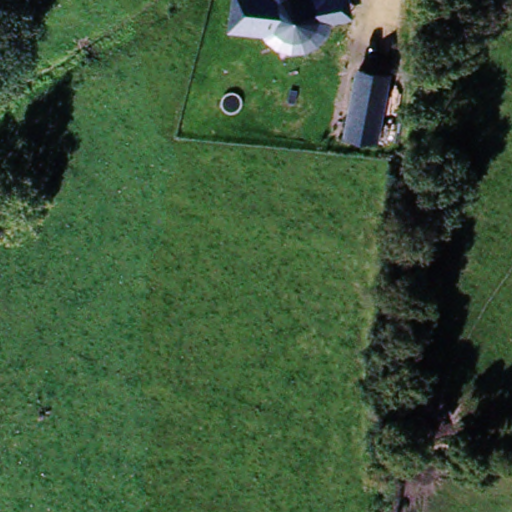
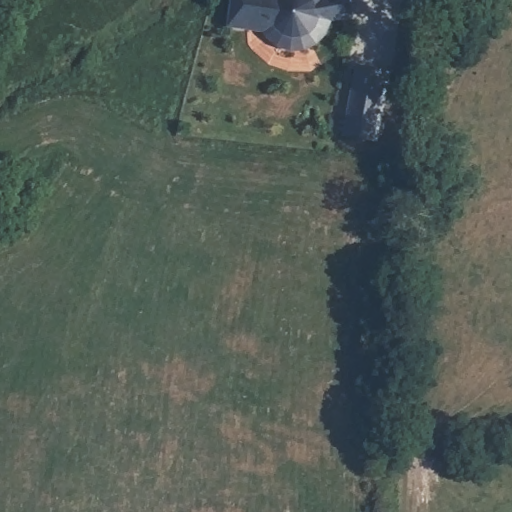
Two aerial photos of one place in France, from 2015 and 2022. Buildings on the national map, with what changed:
unchanged [(349,0),(351,20),(331,22),(328,36),(316,48),(303,53),(290,55),(279,51),(268,44),(263,37),(228,30),(232,0),(349,0)]
unchanged [(353,74),(386,80),(376,142),(343,135),(353,74)]

